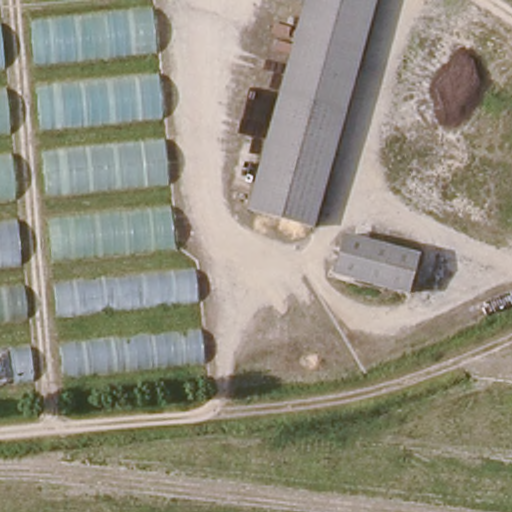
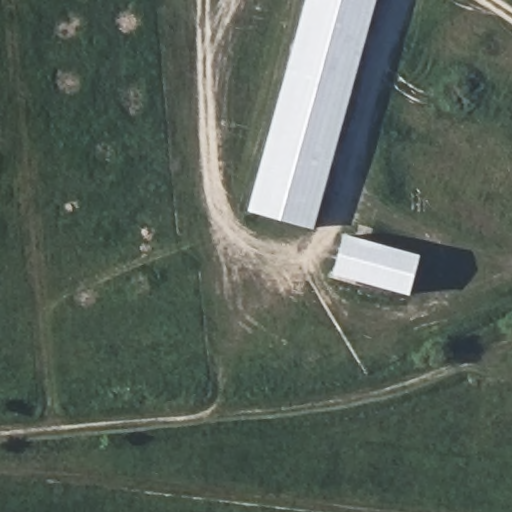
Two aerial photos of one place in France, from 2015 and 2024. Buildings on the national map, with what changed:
demolished [(155,0),(178,257),(196,270),(206,358),(63,379),(29,0),(155,0)]
unchanged [(311,0),(379,0),(348,113),(284,95),(311,0)]
demolished [(0,381),(0,8),(36,376),(0,381)]
unchanged [(315,229),(250,210),(249,210),(284,95),(348,113),(315,229)]
unchanged [(428,261),(416,300),(375,286),(366,279),(339,266),(349,227),(374,240),(383,247),(428,261)]

